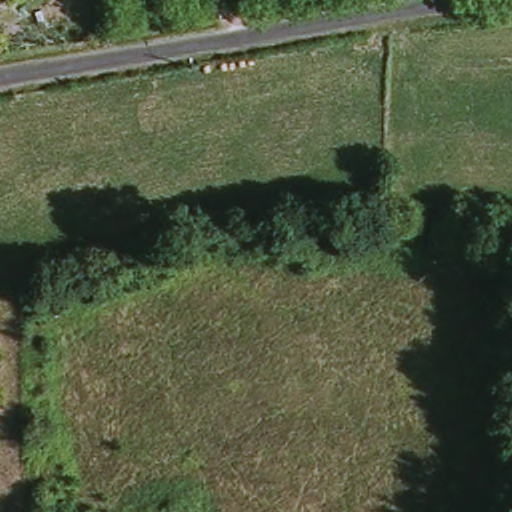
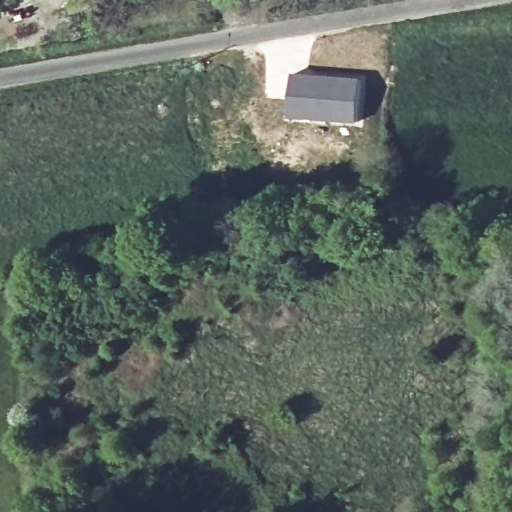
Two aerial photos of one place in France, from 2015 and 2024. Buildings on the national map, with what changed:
new [(293,72),(362,77),(357,125),(288,119),(293,72)]

